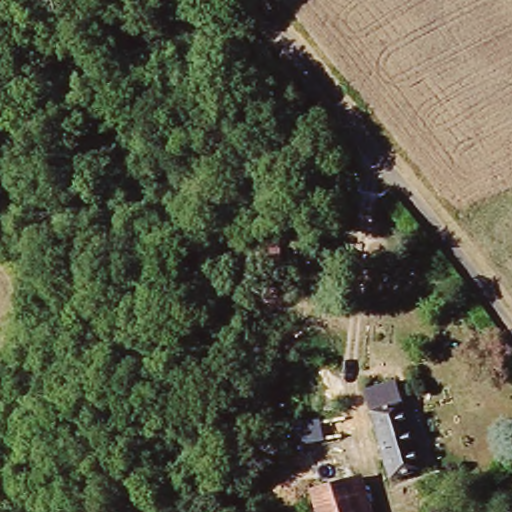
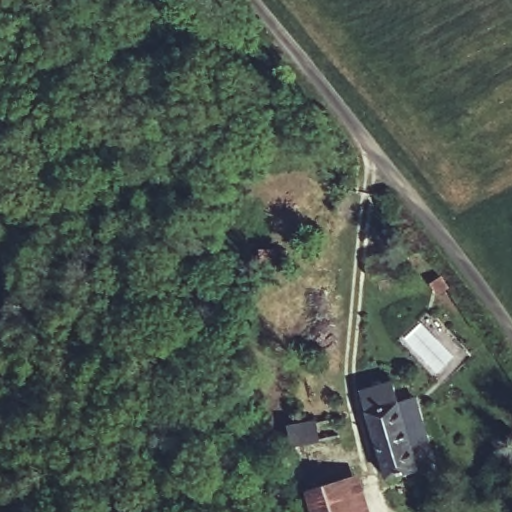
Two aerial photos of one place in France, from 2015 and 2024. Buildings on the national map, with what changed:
unchanged [(390,483),(370,418),(397,409),(417,474),(390,483)]
unchanged [(313,512),(308,495),(290,501),(278,464),(295,458),(283,425),(360,417),(363,434),(326,447),(340,486),(353,482),(363,512),(313,512)]

